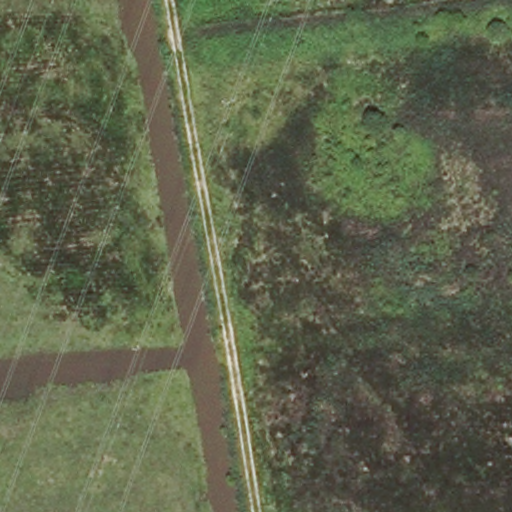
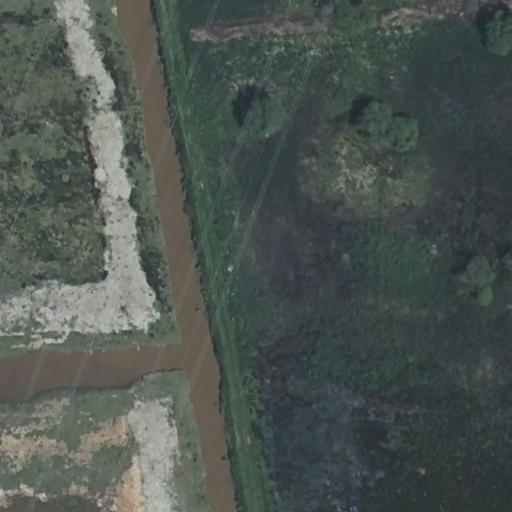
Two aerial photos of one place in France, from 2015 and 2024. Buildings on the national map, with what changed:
[]

